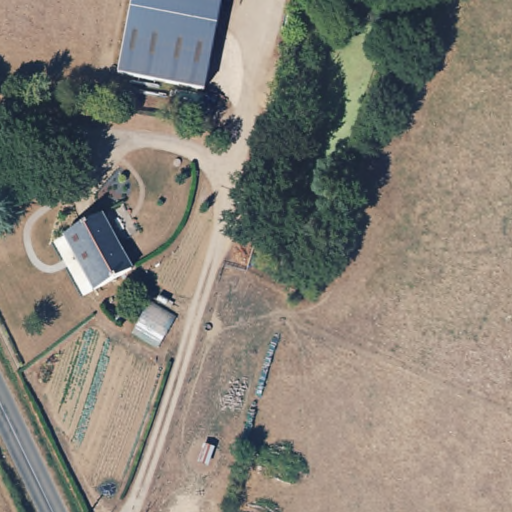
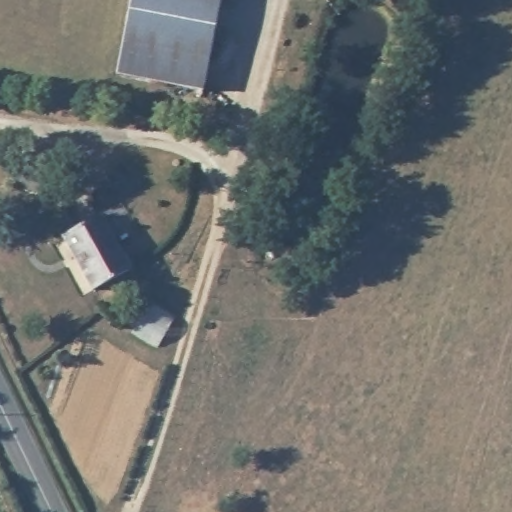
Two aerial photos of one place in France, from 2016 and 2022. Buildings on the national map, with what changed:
unchanged [(200,86),(112,67),(127,0),(219,0),(200,86)]
unchanged [(97,212),(126,266),(92,287),(60,232),(97,212)]

